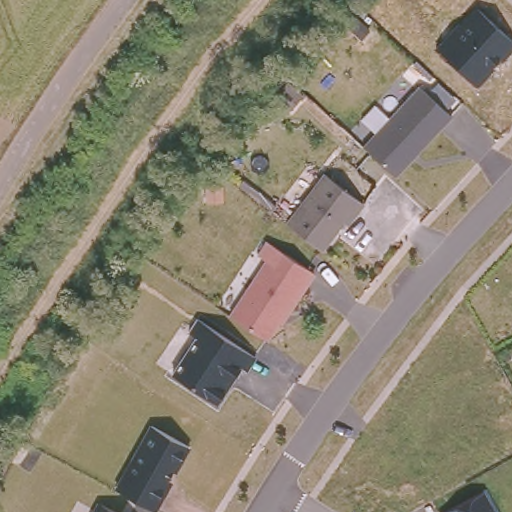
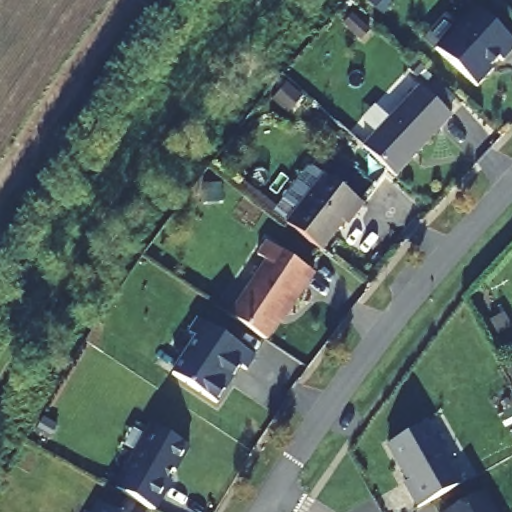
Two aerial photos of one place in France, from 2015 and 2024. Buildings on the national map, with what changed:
unchanged [(430,46),(473,2),(512,40),(512,48),(474,86),(430,46)]
unchanged [(452,116),(418,153),(415,151),(409,159),(411,160),(395,177),(363,147),(420,86),(452,116)]
unchanged [(363,205),(351,220),(347,217),(320,251),(320,250),(286,225),(325,175),(363,205)]
unchanged [(225,312),(259,261),(248,255),(259,237),(313,273),(267,342),(225,312)]
unchanged [(165,367),(196,318),(255,358),(245,373),(236,368),(215,402),(165,367)]
new [(432,424),(465,487),(433,503),(418,508),(388,443),(432,424)]
unchanged [(107,486),(141,425),(186,450),(151,510),(107,486)]
unchanged [(472,482),(491,512),(438,512),(433,503),(472,482)]
unchanged [(118,512),(91,512),(98,500),(118,512)]

